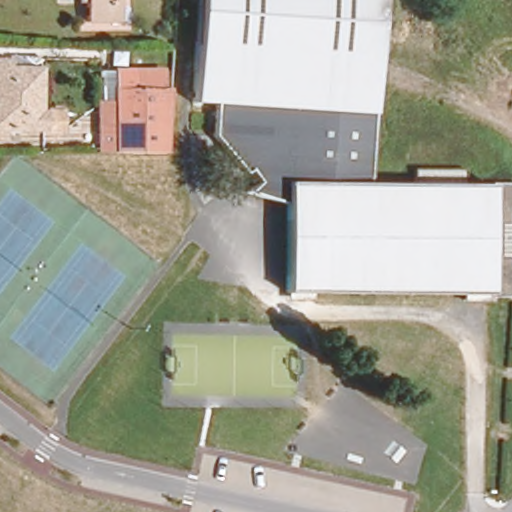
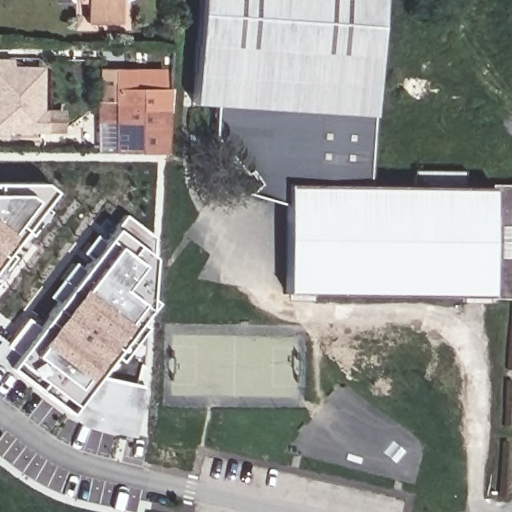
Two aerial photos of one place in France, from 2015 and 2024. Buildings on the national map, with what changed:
unchanged [(120,19),(86,20),(86,0),(120,0),(120,19)]
unchanged [(281,178),(281,202),(247,192),(261,181),(252,169),(246,173),(216,139),(217,104),(196,103),(202,0),(382,0),(374,114),(371,180),(281,178)]
unchanged [(47,106),(47,124),(0,126),(0,66),(7,66),(37,64),(39,107),(47,106)]
unchanged [(172,147),(108,149),(108,144),(95,145),(93,95),(107,94),(106,70),(167,68),(168,85),(176,85),(172,147)]
unchanged [(371,180),(415,181),(411,162),(463,162),(463,179),(485,181),(512,179),(512,293),(280,283),(281,202),(281,178),(371,180)]
new [(54,190),(42,207),(47,211),(29,235),(21,231),(5,252),(12,256),(0,273),(0,181),(42,181),(54,190)]
new [(25,315),(37,327),(56,303),(47,295),(72,261),(82,268),(88,259),(80,251),(94,233),(102,240),(113,226),(124,214),(152,235),(146,251),(151,256),(147,297),(156,302),(146,309),(136,322),(145,327),(121,361),(111,356),(96,375),(141,385),(132,436),(79,424),(66,412),(6,369),(0,365),(0,338),(5,341),(25,315)]

